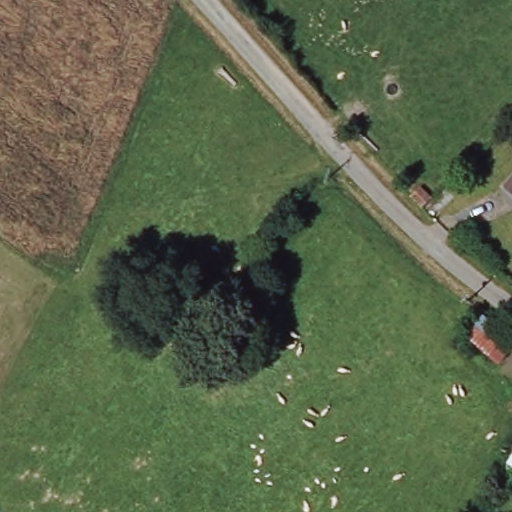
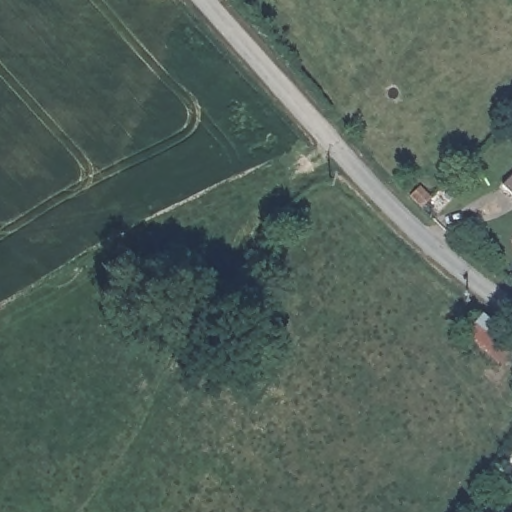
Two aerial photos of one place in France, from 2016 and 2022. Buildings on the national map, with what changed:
unchanged [(499,182),(512,169),(512,196),(499,182)]
unchanged [(437,182),(431,187),(435,191),(429,196),(433,199),(428,204),(418,195),(405,182),(415,171),(428,184),(433,179),(437,182)]
unchanged [(482,317),(511,345),(497,366),(465,340),(482,317)]

